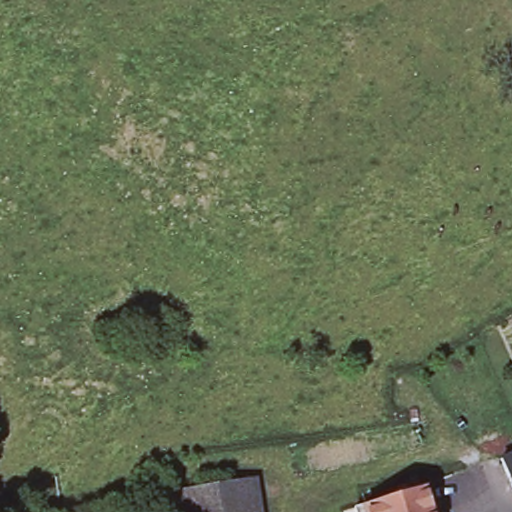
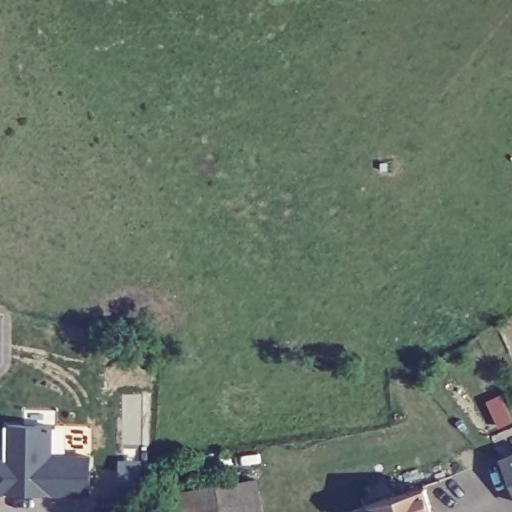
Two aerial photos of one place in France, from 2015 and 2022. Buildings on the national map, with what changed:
new [(54,453),(92,453),(92,497),(0,494),(0,457),(7,458),(7,423),(55,423),(54,453)]
unchanged [(496,454),(512,447),(512,495),(496,454)]
unchanged [(171,486),(258,474),(261,512),(176,512),(171,486)]
unchanged [(424,512),(368,512),(365,502),(425,484),(432,509),(424,512)]
unchanged [(432,509),(433,512),(424,512),(432,509)]

